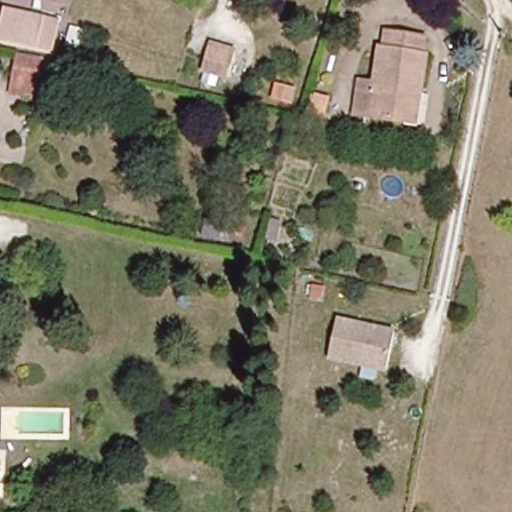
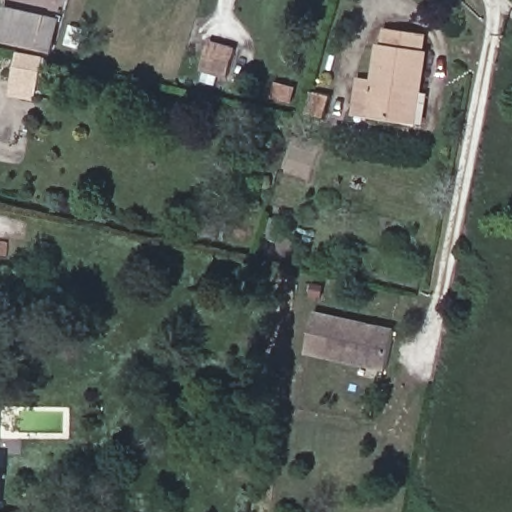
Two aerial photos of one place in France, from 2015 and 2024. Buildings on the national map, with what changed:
unchanged [(46,62),(41,86),(35,85),(23,113),(3,111),(15,50),(0,45),(0,18),(2,7),(56,16),(46,62)]
unchanged [(406,121),(356,114),(361,80),(374,81),(380,46),(384,46),(386,30),(424,36),(422,52),(426,53),(421,89),(416,122),(406,121)]
unchanged [(211,43),(236,50),(229,77),(203,70),(211,43)]
unchanged [(395,329),(387,367),(329,356),(337,317),(395,329)]
unchanged [(0,473),(0,465),(1,466),(0,473)]

